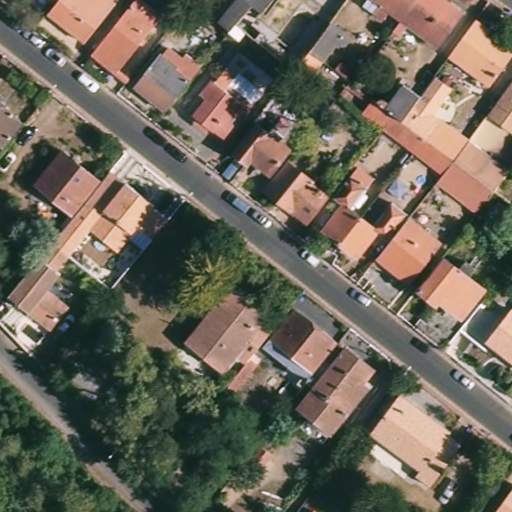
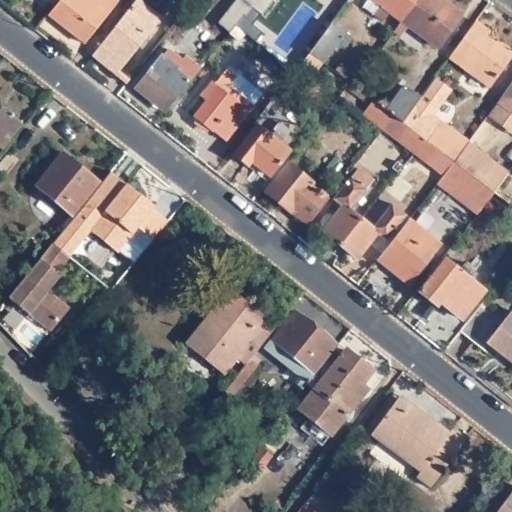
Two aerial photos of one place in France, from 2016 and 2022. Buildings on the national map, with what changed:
unchanged [(70,0),(113,0),(121,6),(88,49),(74,38),(54,21),(58,16),(70,0)]
unchanged [(55,0),(64,0),(61,5),(55,0)]
unchanged [(229,32),(218,22),(235,1),(236,0),(273,0),(262,15),(259,13),(244,31),(235,25),(229,32)]
unchanged [(297,42),(307,27),(317,15),(327,0),(348,0),(331,22),(346,34),(352,39),(346,46),(339,41),(324,64),(309,52),(293,72),(267,50),(277,38),(292,50),(297,42)]
unchanged [(371,4),(373,0),(424,0),(404,27),(393,20),(387,26),(377,19),(368,12),(374,5),(371,4)]
unchanged [(463,24),(442,52),(413,33),(406,43),(397,37),(404,27),(424,0),(441,0),(454,9),(467,19),(463,24)]
unchanged [(142,4),(164,21),(119,80),(96,62),(142,4)]
unchanged [(489,96),(473,85),(448,67),(474,31),(490,42),(486,47),(495,54),(512,65),(489,96)]
unchanged [(154,107),(138,94),(165,60),(167,60),(172,54),(185,64),(189,60),(207,72),(195,86),(194,85),(171,115),(168,119),(154,107)]
unchanged [(239,77),(242,74),(267,94),(230,141),(218,133),(217,134),(198,118),(209,100),(204,96),(214,82),(218,85),(229,69),(239,77)]
unchanged [(413,153),(382,130),(362,114),(372,100),(376,102),(376,101),(377,101),(378,101),(378,100),(379,100),(380,100),(381,100),(382,100),(383,100),(384,100),(384,101),(385,101),(390,95),(394,99),(403,87),(419,98),(417,100),(415,104),(413,106),(412,109),(436,126),(440,120),(468,141),(509,172),(494,193),(477,215),(437,182),(442,175),(413,153)]
unchanged [(498,105),(512,87),(512,139),(487,121),(496,109),(498,105)]
unchanged [(16,117),(28,126),(25,129),(9,150),(4,146),(0,151),(0,100),(19,114),(16,117)]
unchanged [(273,134),(275,129),(288,139),(284,142),(294,150),(274,176),(256,162),(253,166),(238,155),(261,125),(273,134)]
unchanged [(72,210),(35,181),(56,154),(61,147),(80,162),(98,176),(72,210)]
unchanged [(284,204),(269,193),(293,163),(319,184),(317,186),(332,199),(314,221),(299,209),(295,213),(284,204)]
unchanged [(109,168),(124,180),(153,202),(151,204),(168,216),(163,222),(155,232),(139,220),(118,248),(89,226),(69,252),(53,240),(109,168)]
unchanged [(327,231),(329,228),(325,225),(324,220),(328,215),(334,215),(338,217),(346,207),(337,199),(362,168),(377,180),(354,209),(366,218),(344,245),(327,231)]
unchanged [(366,218),(376,226),(395,204),(411,215),(389,241),(380,234),(361,258),(344,245),(366,218)]
unchanged [(445,245),(414,283),(383,260),(414,220),(445,245)]
unchanged [(53,240),(69,252),(56,268),(60,271),(47,287),(69,305),(51,327),(9,295),(53,240)]
unchanged [(464,272),(471,263),(479,269),(472,278),(489,291),(467,319),(444,302),(442,305),(424,292),(449,260),(464,272)]
unchanged [(203,365),(185,351),(200,331),(199,330),(229,293),(268,323),(229,371),(223,380),(203,365)]
unchanged [(501,314),(479,341),(466,331),(488,303),(501,314)]
unchanged [(322,370),(312,385),(305,392),(299,388),(307,380),(297,372),(292,372),(283,365),(282,360),(269,350),(297,313),(314,326),(325,335),(341,347),(338,350),(322,370)]
unchanged [(493,348),(510,326),(512,323),(512,363),(493,348)]
unchanged [(349,351),(376,370),(365,385),(371,390),(364,397),(335,435),(304,410),(319,391),(312,385),(322,370),(338,350),(346,356),(349,351)]
unchanged [(250,363),(258,370),(230,405),(223,398),(250,363)]
unchanged [(435,491),(422,481),(424,477),(417,471),(384,446),(376,440),(396,413),(404,401),(413,406),(454,437),(453,440),(466,450),(435,491)]
unchanged [(270,457),(260,470),(249,462),(259,448),(270,457)]
unchanged [(512,498),(512,512),(501,512),(512,498)]

